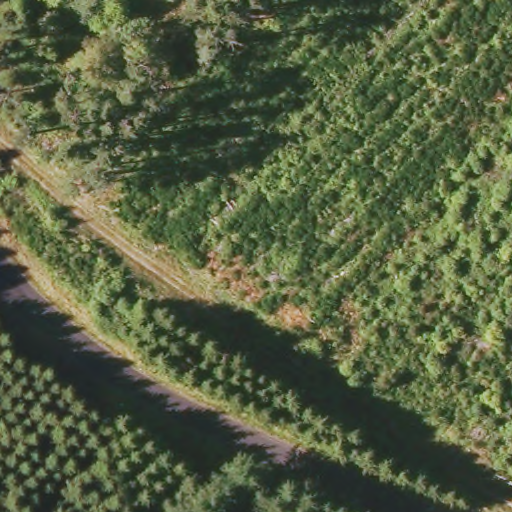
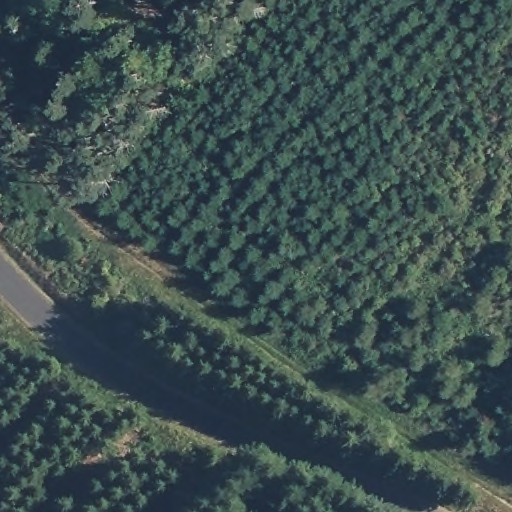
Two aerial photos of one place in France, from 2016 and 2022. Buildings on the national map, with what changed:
[]

